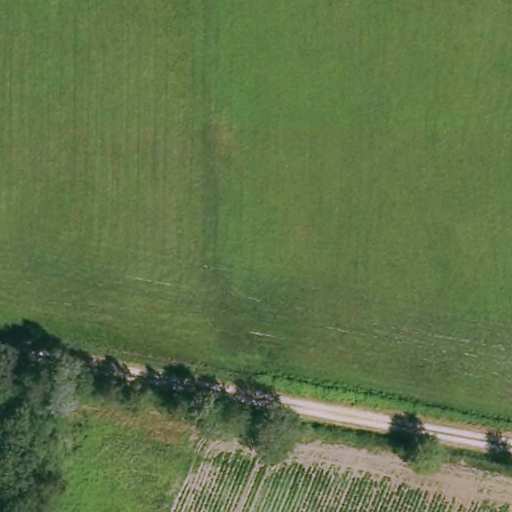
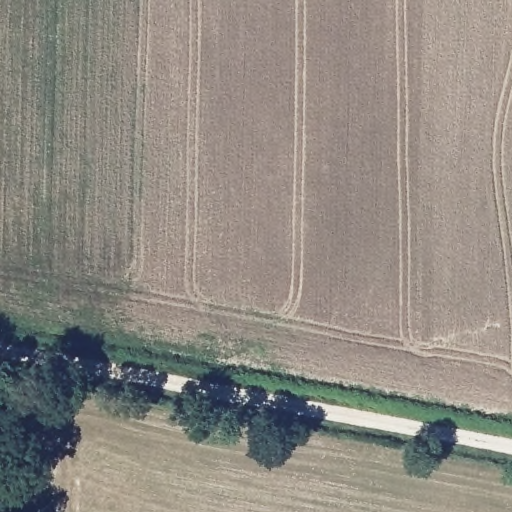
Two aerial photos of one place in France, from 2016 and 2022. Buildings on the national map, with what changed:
[]

